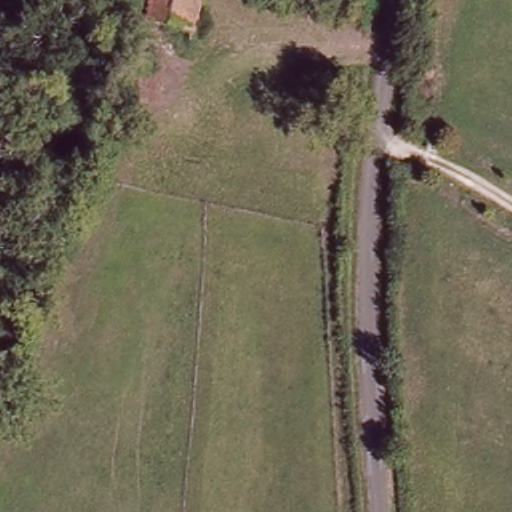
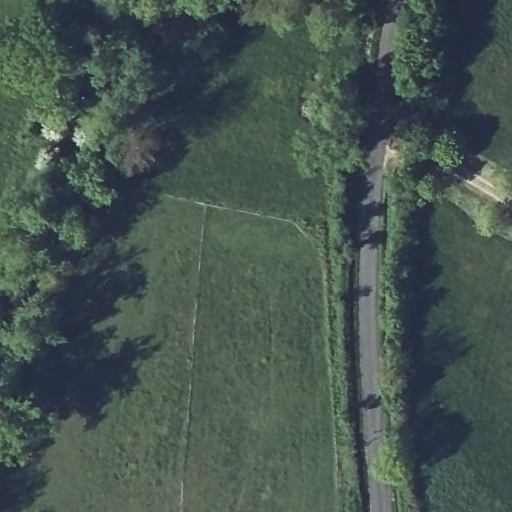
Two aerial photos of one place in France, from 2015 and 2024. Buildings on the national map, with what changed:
unchanged [(155,0),(203,0),(193,39),(148,26),(155,0)]

